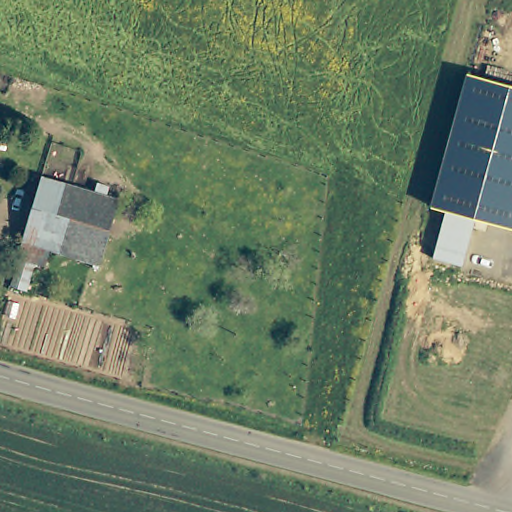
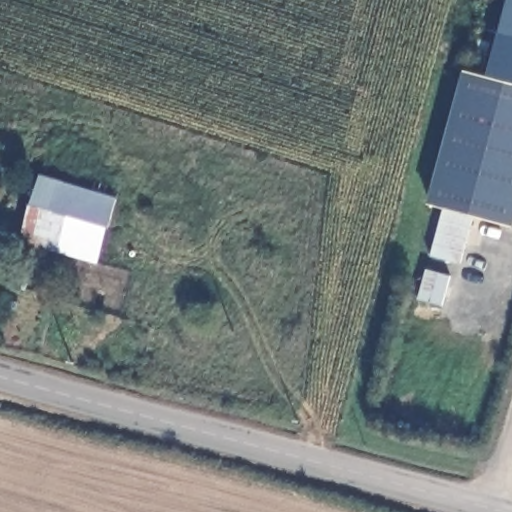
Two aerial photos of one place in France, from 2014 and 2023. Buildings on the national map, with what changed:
new [(489,77),(510,0),(512,0),(512,83),(489,77)]
unchanged [(475,218),(462,264),(432,256),(445,210),(430,206),(466,70),(512,83),(512,228),(475,218)]
unchanged [(19,236),(38,171),(113,192),(93,258),(45,244),(40,261),(14,253),(19,236)]

